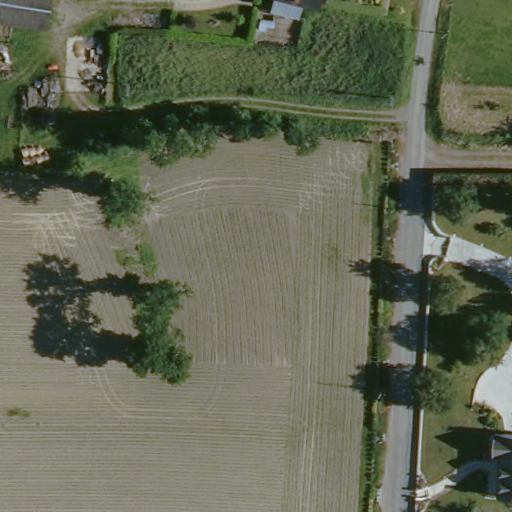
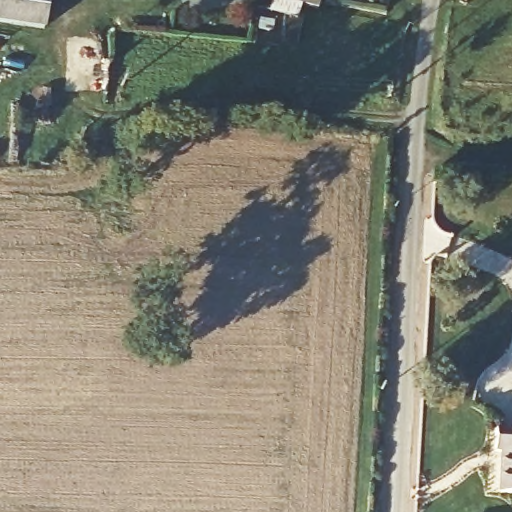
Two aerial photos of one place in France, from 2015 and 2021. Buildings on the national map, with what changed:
unchanged [(43,30),(0,25),(0,0),(47,0),(43,30)]
unchanged [(265,0),(321,0),(319,9),(318,12),(309,10),(305,10),(304,21),(277,15),(282,3),(265,0)]
unchanged [(503,495),(504,458),(498,457),(498,435),(512,436),(512,496),(503,495)]

